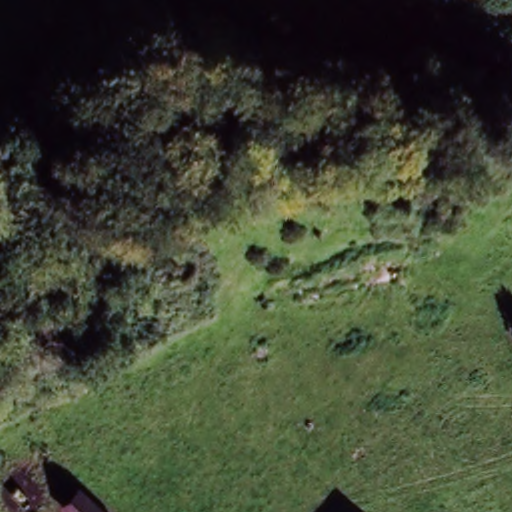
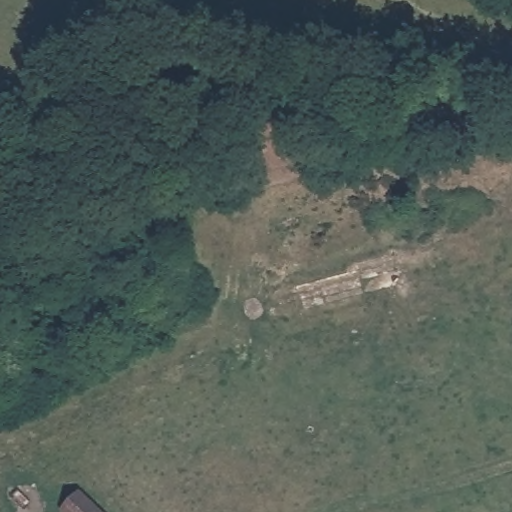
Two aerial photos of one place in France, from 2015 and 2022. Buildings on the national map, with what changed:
unchanged [(69,501),(86,512),(61,512),(69,501)]

